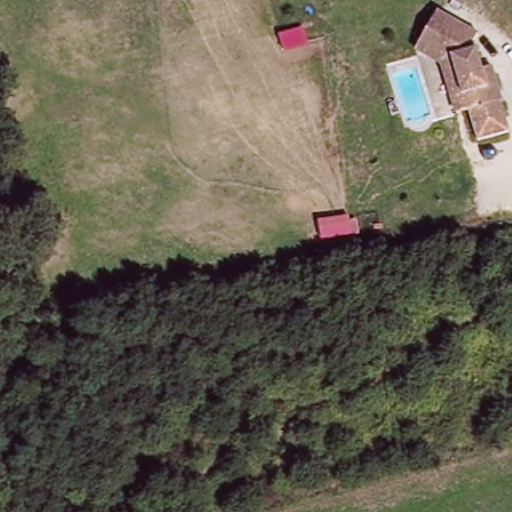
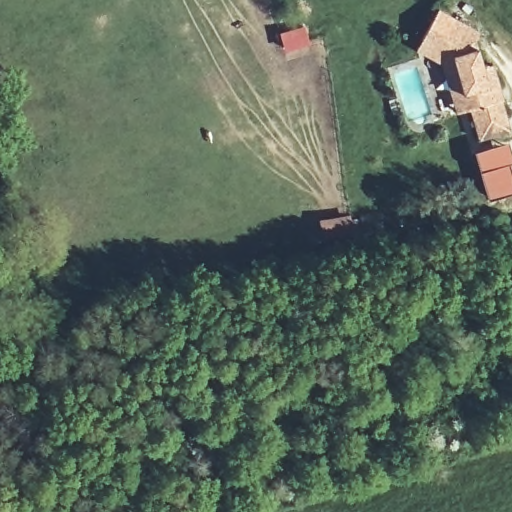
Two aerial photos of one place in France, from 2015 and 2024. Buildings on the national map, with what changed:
unchanged [(425,36),(441,8),(484,33),(480,41),(485,64),(501,61),(504,74),(510,99),(504,101),(512,130),(483,137),(475,107),(471,108),(455,53),(425,36)]
unchanged [(460,111),(446,63),(419,46),(425,36),(455,53),(471,108),(460,111)]
new [(490,196),(482,167),(478,153),(507,145),(512,159),(507,160),(512,182),(512,190),(490,196)]

